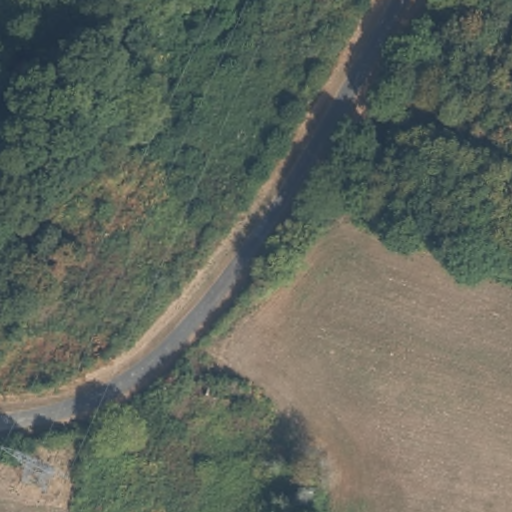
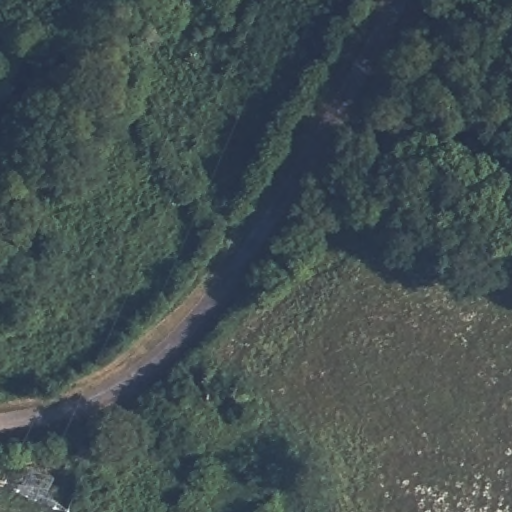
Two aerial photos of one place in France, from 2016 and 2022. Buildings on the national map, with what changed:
unchanged [(162,423),(171,389),(202,397),(208,377),(241,385),(236,405),(254,409),(249,428),(232,426),(227,438),(162,423)]

